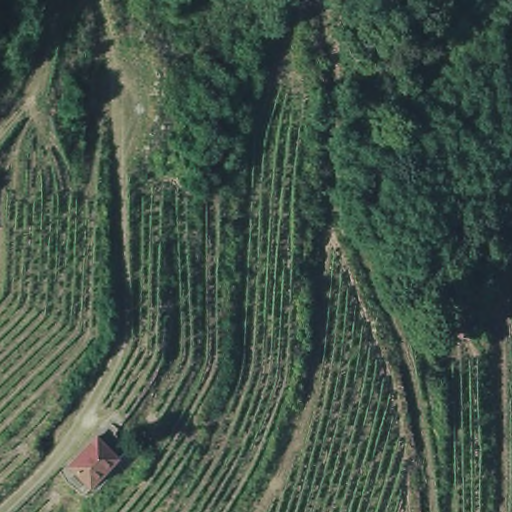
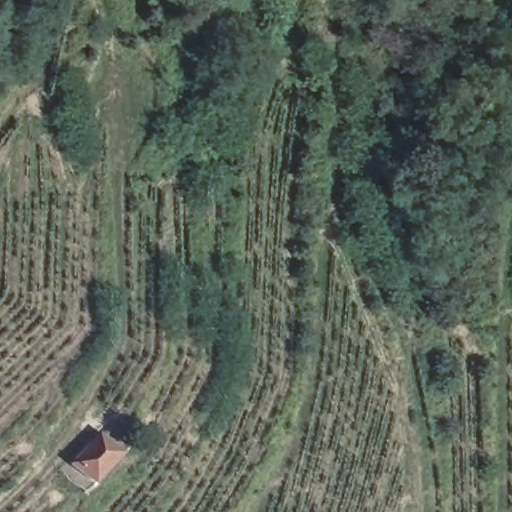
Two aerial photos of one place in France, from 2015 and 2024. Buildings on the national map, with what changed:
unchanged [(92,487),(71,467),(98,438),(120,458),(92,487)]

